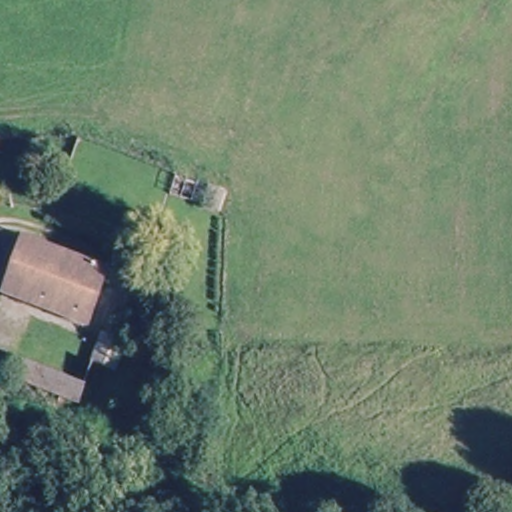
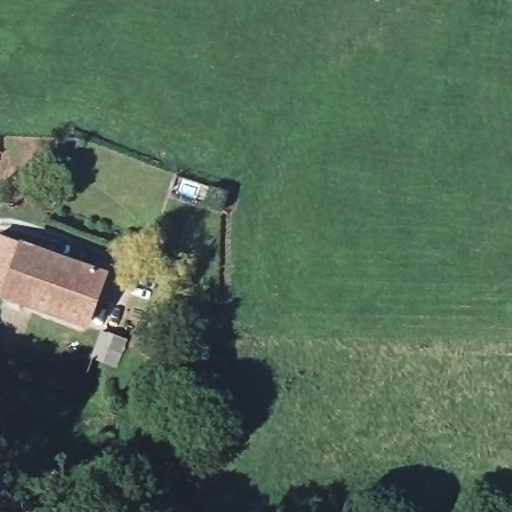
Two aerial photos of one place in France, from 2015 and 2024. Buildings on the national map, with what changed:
unchanged [(3,285),(15,247),(125,282),(107,337),(0,304),(0,285),(3,285)]
unchanged [(117,346),(143,354),(135,381),(111,375),(117,346)]

